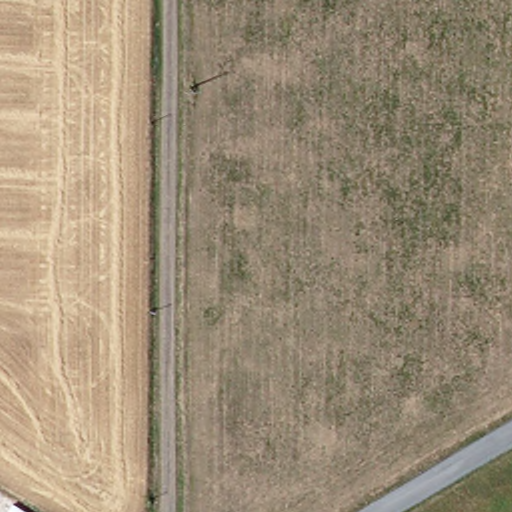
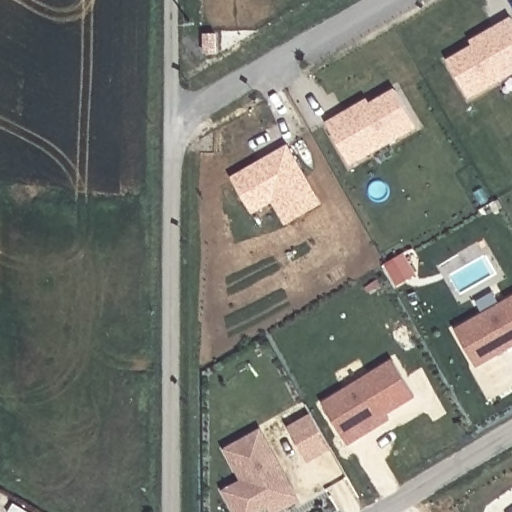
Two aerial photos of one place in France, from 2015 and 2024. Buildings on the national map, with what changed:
new [(472,42),(481,37),(512,19),(512,72),(469,96),(448,61),(474,47),(472,42)]
new [(368,100),(370,105),(396,90),(417,126),(350,164),(327,124),(359,106),(368,100)]
new [(231,176),(287,144),(322,204),(284,225),(271,203),(252,214),(231,176)]
new [(512,298),(512,345),(477,365),(456,330),(512,298)]
new [(362,435),(348,443),(323,404),(393,361),(414,395),(386,412),(389,418),(362,435)]
new [(312,415),(330,447),(307,460),(288,429),(312,415)]
new [(276,512),(272,512),(271,509),(269,505),(257,512),(237,512),(225,491),(244,480),(227,450),(260,431),(284,473),(298,500),(276,512)]

